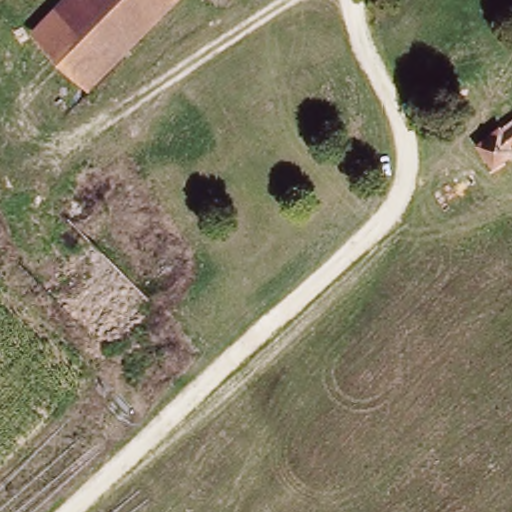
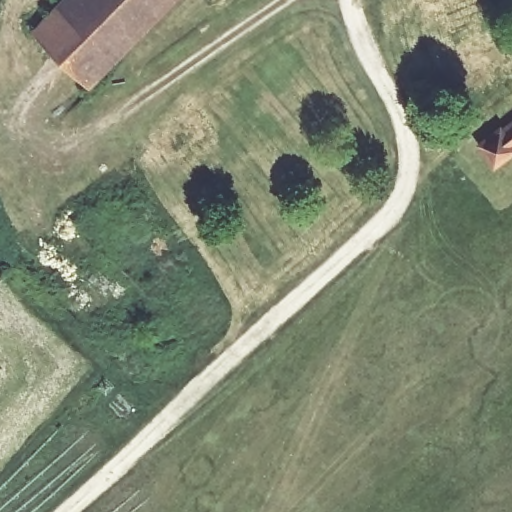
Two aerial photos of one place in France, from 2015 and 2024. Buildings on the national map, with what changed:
unchanged [(95,78),(40,23),(64,0),(176,0),(95,78)]
unchanged [(503,131),(512,141),(512,151),(497,163),(485,148),(479,140),(498,124),(503,131)]

